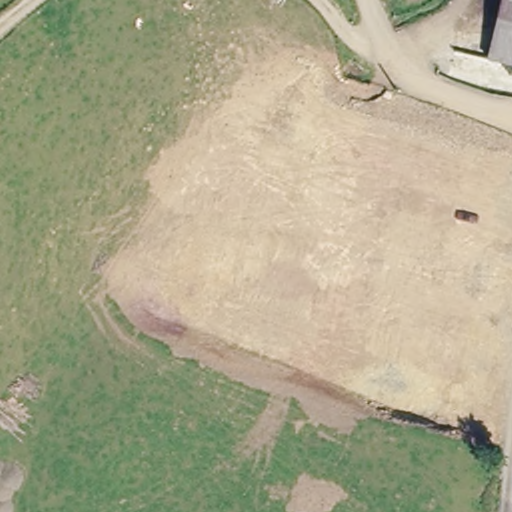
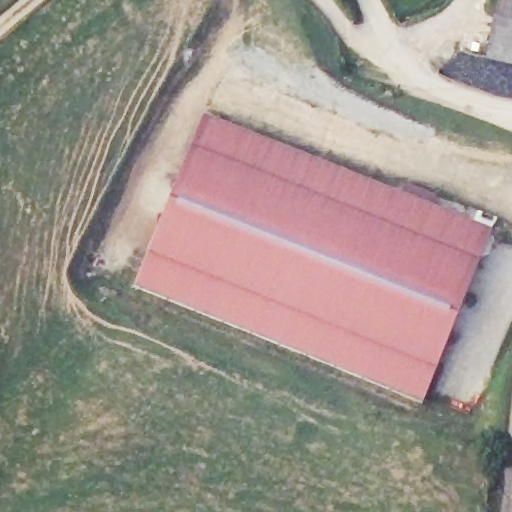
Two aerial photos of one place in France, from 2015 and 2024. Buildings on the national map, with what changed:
unchanged [(505,0),(512,0),(512,67),(489,61),(505,0)]
new [(202,116),(491,231),(424,401),(135,285),(202,116)]
demolished [(512,253),(512,310),(505,309),(502,335),(482,333),(461,330),(461,334),(415,329),(422,266),(402,261),(406,239),(475,248),(512,253)]

